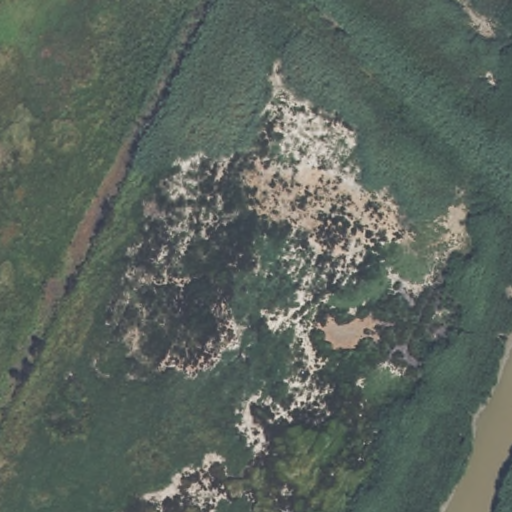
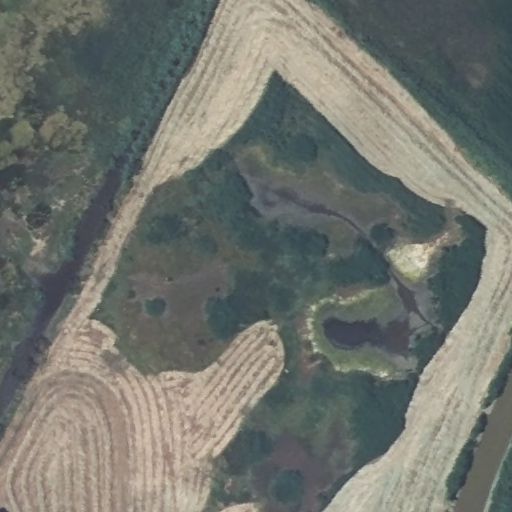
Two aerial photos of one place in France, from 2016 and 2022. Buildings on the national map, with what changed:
[]

